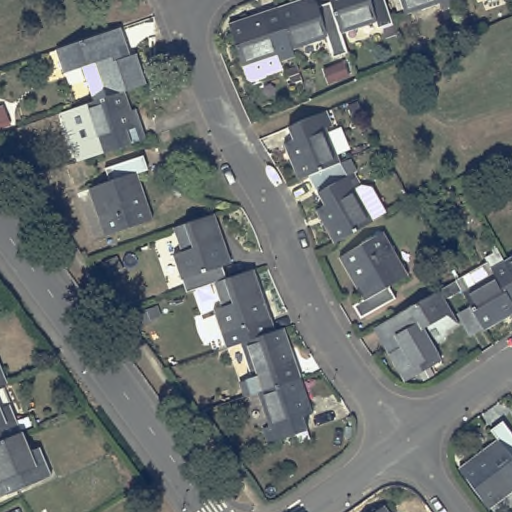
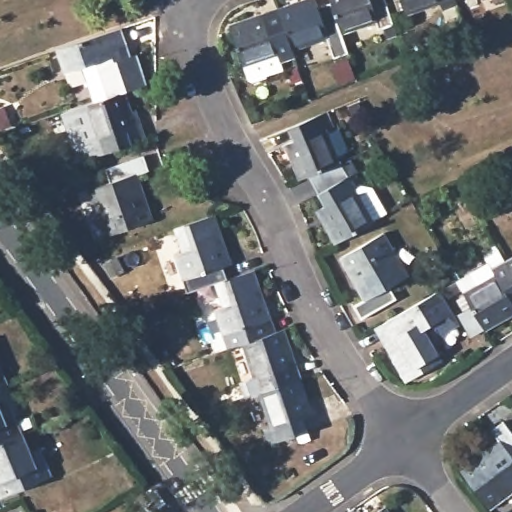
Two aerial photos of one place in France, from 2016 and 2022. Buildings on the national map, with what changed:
unchanged [(319,0),(320,3),(329,0),(334,0),(344,30),(351,49),(336,53),(330,35),(294,47),(281,4),(292,0),(319,0)]
unchanged [(381,25),(379,18),(344,30),(334,0),(390,0),(397,19),(381,25)]
unchanged [(441,10),(438,4),(405,15),(399,0),(454,0),(456,5),(441,10)]
unchanged [(294,47),(297,54),(282,59),(283,63),(267,69),(268,71),(254,76),(249,74),(230,21),(281,4),(294,47)]
unchanged [(130,27),(135,43),(125,47),(131,60),(145,55),(156,84),(133,91),(102,102),(90,67),(72,72),(64,50),(130,27)]
unchanged [(102,102),(133,91),(145,127),(134,131),(139,143),(101,156),(96,142),(87,145),(76,111),(102,102)]
unchanged [(324,116),(330,131),(323,134),(337,167),(307,179),(296,184),(281,149),(292,144),(287,132),(324,116)]
unchanged [(113,186),(109,174),(146,162),(151,174),(139,178),(155,225),(107,240),(92,194),(113,186)]
unchanged [(337,167),(346,182),(352,179),(358,191),(370,197),(382,220),(331,249),(312,215),(322,209),(307,179),(337,167)]
unchanged [(218,214),(235,263),(226,267),(231,279),(217,283),(190,292),(177,255),(186,252),(177,228),(218,214)]
unchanged [(386,234),(410,276),(391,287),(397,300),(363,319),(356,306),(366,300),(343,257),(386,234)]
unchanged [(512,276),(503,261),(512,256),(512,276)]
unchanged [(468,303),(463,293),(456,281),(487,263),(491,270),(503,261),(512,276),(512,303),(512,304),(512,316),(486,332),(482,326),(469,333),(457,311),(468,303)]
unchanged [(231,279),(257,270),(274,318),(266,322),(270,335),(245,343),(230,348),(216,310),(225,307),(217,283),(231,279)]
unchanged [(438,291),(456,323),(445,330),(442,340),(431,346),(438,361),(403,382),(390,356),(374,328),(380,325),(438,291)]
unchanged [(270,335),(287,328),(304,380),(262,394),(256,396),(251,382),(257,380),(245,343),(270,335)]
unchanged [(12,377),(0,382),(0,351),(12,377)]
unchanged [(304,380),(316,414),(305,418),(308,431),(272,444),(266,429),(272,427),(262,394),(304,380)]
unchanged [(6,405),(14,401),(26,428),(0,439),(0,392),(6,405)]
unchanged [(26,428),(27,428),(36,447),(44,444),(57,471),(2,493),(0,488),(0,477),(1,477),(0,475),(0,439),(26,428)]
unchanged [(493,438),(506,429),(512,437),(512,501),(498,512),(489,512),(462,477),(501,447),(493,438)]
unchanged [(388,504),(394,512),(377,512),(388,504)]

